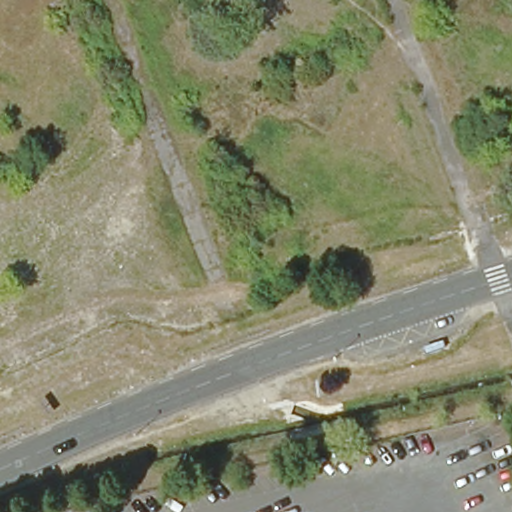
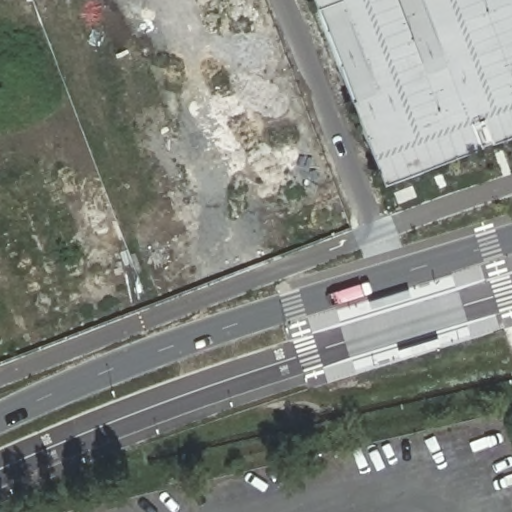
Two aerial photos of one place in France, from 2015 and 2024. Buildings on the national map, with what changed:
new [(373,193),(304,0),(512,0),(512,139),(373,193)]

